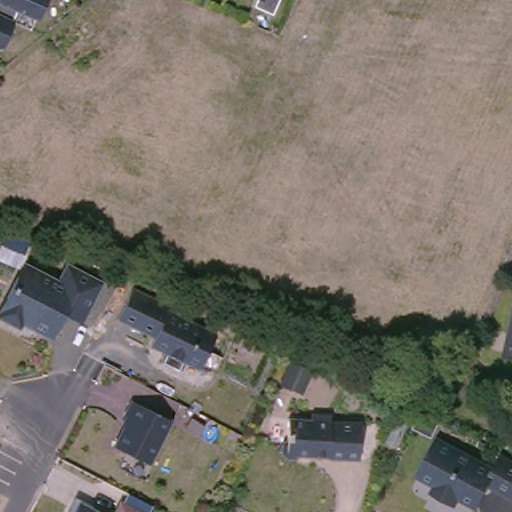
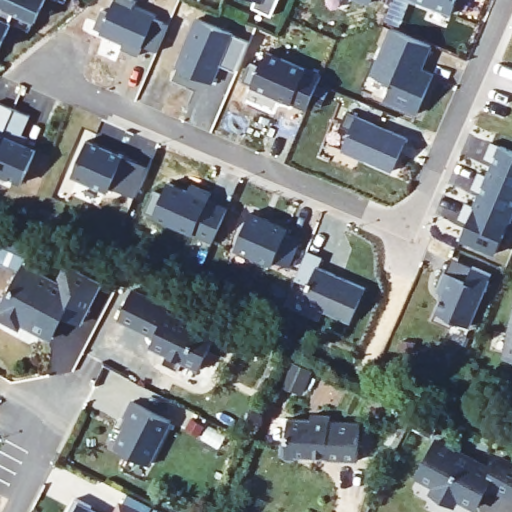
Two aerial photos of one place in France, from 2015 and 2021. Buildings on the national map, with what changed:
unchanged [(36,19),(16,10),(0,47),(0,0),(45,0),(36,19)]
unchanged [(273,14),(254,6),(256,0),(279,0),(273,14)]
new [(372,1),(368,0),(373,0),(372,1)]
new [(199,20),(234,34),(234,35),(250,42),(237,72),(221,65),(213,83),(178,69),(199,20)]
new [(433,44),(427,59),(423,67),(435,72),(419,112),(387,98),(393,82),(373,74),(393,27),(433,44)]
new [(252,63),(261,67),(268,51),(323,75),(309,108),(244,80),(252,63)]
new [(31,116),(23,141),(35,147),(22,181),(0,172),(0,102),(31,116)]
new [(348,110),(409,136),(394,170),(344,148),(352,129),(342,125),(348,110)]
new [(110,187),(108,190),(74,176),(89,142),(123,157),(120,166),(130,171),(120,192),(110,187)]
new [(512,229),(509,226),(498,255),(460,239),(499,144),(512,149),(512,229)]
new [(157,195),(166,200),(172,187),(192,196),(195,189),(215,197),(212,205),(231,213),(217,246),(148,216),(157,195)]
new [(254,216),(293,232),(291,237),(306,243),(294,270),(279,265),(277,268),(239,252),(254,216)]
new [(309,250),(324,256),(320,265),(368,286),(353,321),(304,300),(311,283),(297,278),(309,250)]
new [(440,293),(448,275),(454,260),(476,270),(495,277),(473,329),(458,323),(455,330),(436,323),(447,296),(440,293)]
unchanged [(96,290),(76,329),(58,320),(46,345),(16,330),(14,336),(0,328),(0,307),(18,272),(58,292),(68,275),(96,290)]
unchanged [(126,297),(164,315),(163,318),(211,341),(193,378),(176,371),(173,380),(156,372),(161,363),(144,356),(148,347),(111,330),(126,297)]
unchanged [(512,317),(512,361),(501,358),(512,317)]
unchanged [(121,428),(116,426),(124,411),(163,432),(139,474),(106,455),(121,428)]
unchanged [(308,421),(309,416),(329,417),(328,422),(359,423),(358,461),(326,459),(327,457),(301,456),(295,461),(285,460),(281,455),(281,445),(286,440),(287,420),(308,421)]
unchanged [(499,457),(512,464),(512,498),(486,484),(474,507),(456,498),(452,505),(430,493),(434,486),(416,477),(434,440),(492,470),(499,457)]
unchanged [(82,512),(60,512),(64,502),(82,512)]
unchanged [(118,512),(108,512),(111,508),(118,512)]

